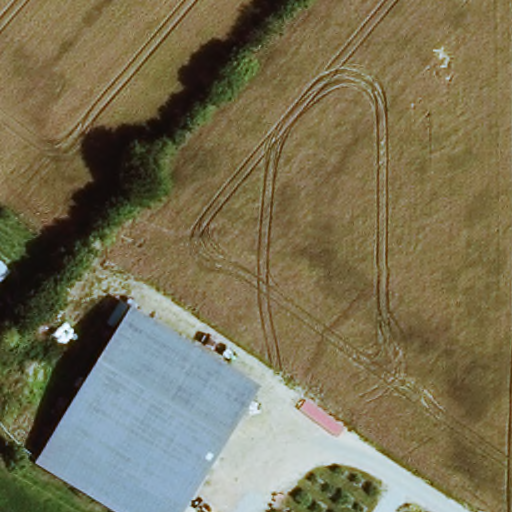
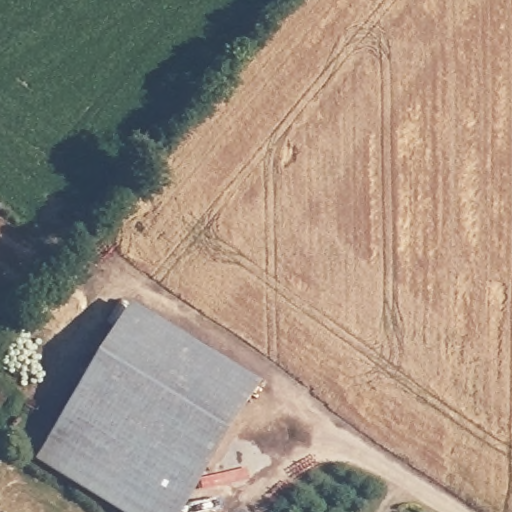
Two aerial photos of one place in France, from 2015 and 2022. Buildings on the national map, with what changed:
unchanged [(263,383),(187,512),(119,512),(35,461),(132,304),(263,383)]

